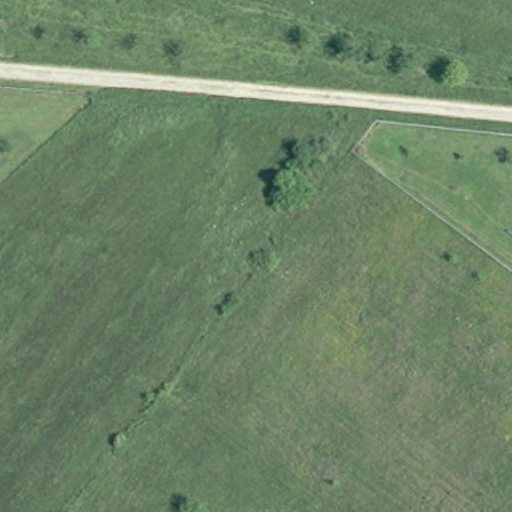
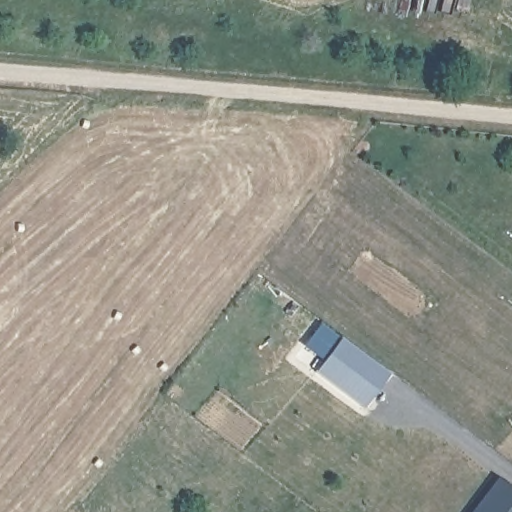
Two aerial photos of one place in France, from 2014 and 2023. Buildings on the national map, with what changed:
new [(338,336),(389,376),(364,409),(313,370),(338,336)]
new [(494,477),(512,491),(512,512),(468,512),(494,477)]

